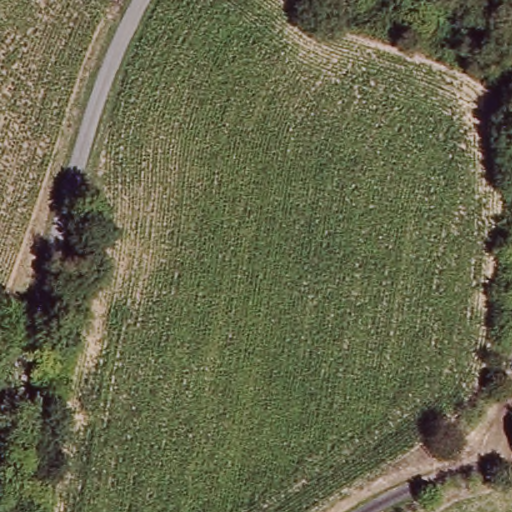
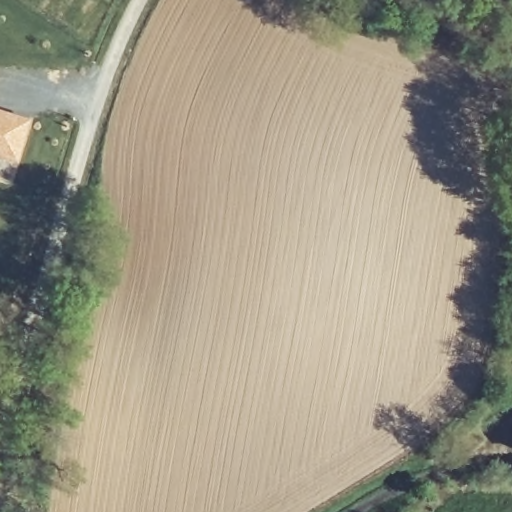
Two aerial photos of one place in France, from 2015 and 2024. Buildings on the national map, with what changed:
new [(31,120),(19,159),(0,152),(0,110),(10,113),(31,120)]

